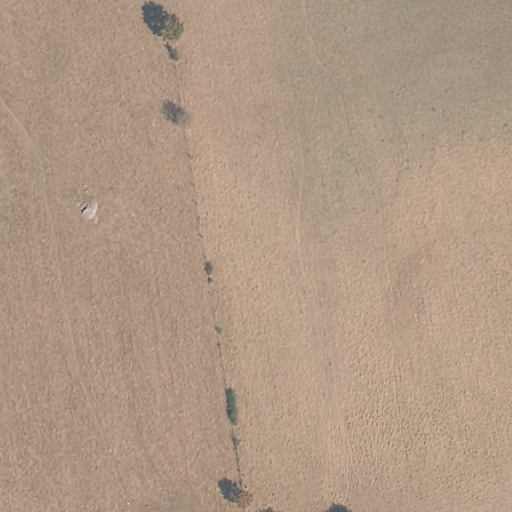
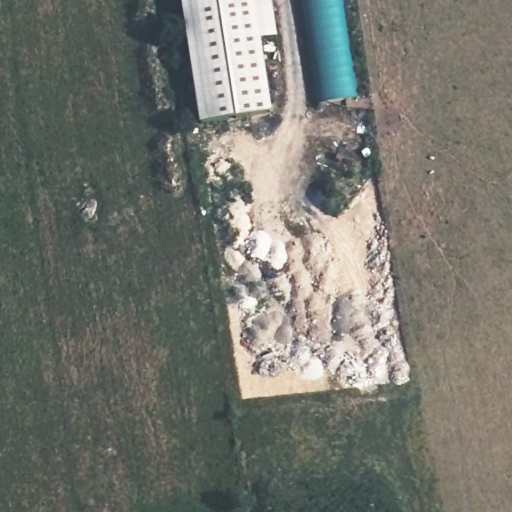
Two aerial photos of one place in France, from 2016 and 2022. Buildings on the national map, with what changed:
new [(276,37),(259,41),(270,112),(198,122),(179,0),(271,0),(276,37)]
new [(356,98),(320,103),(305,0),(342,0),(356,98)]

